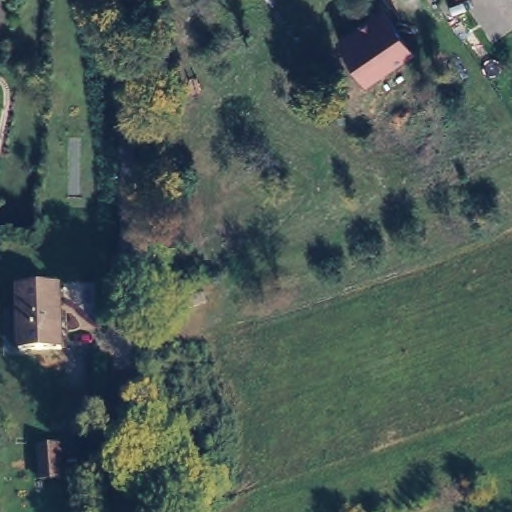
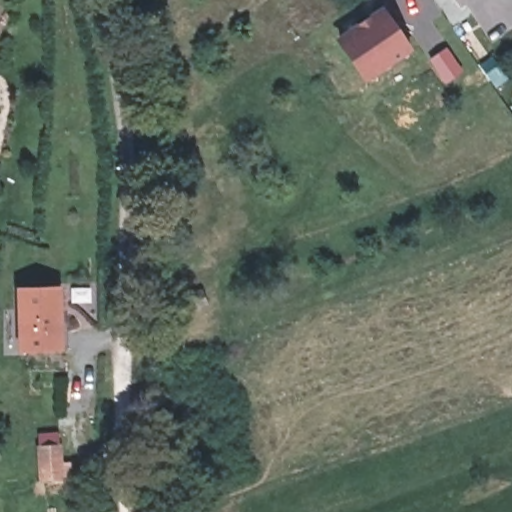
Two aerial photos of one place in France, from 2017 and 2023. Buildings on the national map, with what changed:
unchanged [(411,51),(364,84),(334,39),(380,7),(411,51)]
unchanged [(0,83),(0,80),(1,81),(0,83)]
unchanged [(18,292),(22,292),(56,292),(55,351),(49,351),(14,349),(16,336),(18,292)]

